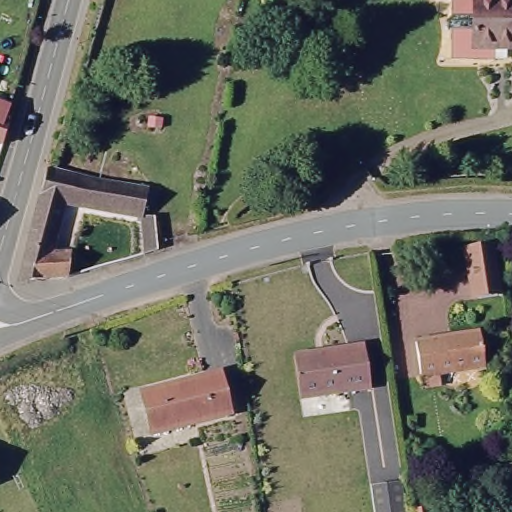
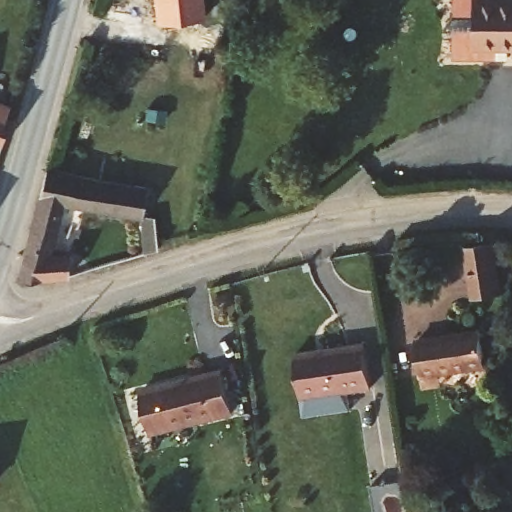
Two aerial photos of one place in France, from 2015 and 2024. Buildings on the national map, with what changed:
new [(204,0),(206,19),(158,24),(155,0),(204,0)]
unchanged [(449,61),(448,0),(468,0),(470,51),(496,50),(496,60),(449,61)]
unchanged [(468,0),(512,0),(512,50),(470,51),(468,0)]
unchanged [(4,108),(3,114),(10,118),(1,143),(0,143),(0,106),(4,108)]
unchanged [(58,207),(44,248),(81,247),(84,269),(14,277),(42,178),(144,188),(142,214),(156,214),(159,254),(138,260),(139,213),(58,207)]
unchanged [(479,235),(487,284),(459,289),(452,239),(479,235)]
unchanged [(477,328),(482,362),(417,372),(412,339),(477,328)]
unchanged [(360,339),(370,381),(299,396),(291,355),(360,339)]
unchanged [(216,369),(228,409),(150,431),(137,391),(216,369)]
unchanged [(373,504),(370,486),(402,481),(405,499),(407,512),(374,512),(373,504)]

